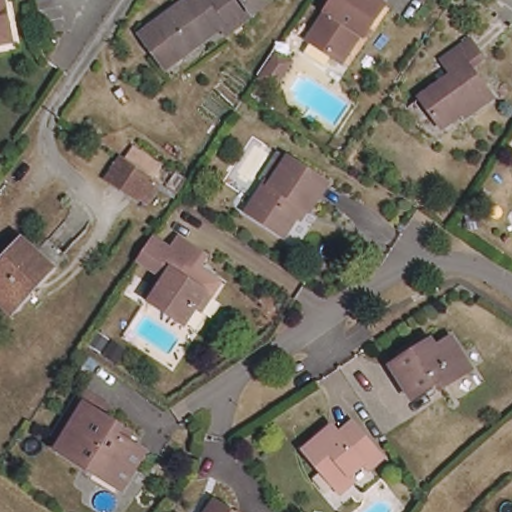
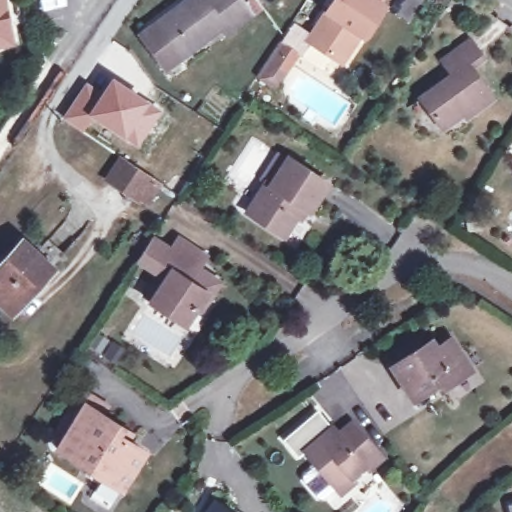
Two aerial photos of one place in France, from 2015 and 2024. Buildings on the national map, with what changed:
unchanged [(0,42),(0,0),(4,0),(9,41),(0,42)]
unchanged [(225,44),(221,38),(178,69),(152,34),(195,2),(197,7),(207,0),(274,0),(273,8),(225,44)]
unchanged [(387,14),(367,44),(360,40),(340,68),(309,46),(339,0),(387,0),(381,9),(387,14)]
unchanged [(468,41),(479,57),(467,64),(492,99),(463,121),(460,115),(439,130),(419,100),(451,78),(439,63),(468,41)]
unchanged [(254,45),(268,54),(252,79),(239,70),(254,45)]
new [(102,89),(111,76),(164,110),(137,148),(94,119),(88,114),(102,89)]
new [(86,79),(102,89),(88,114),(94,119),(84,134),(61,119),(86,79)]
unchanged [(107,169),(120,149),(157,174),(145,194),(107,169)]
unchanged [(300,219),(288,237),(248,211),(267,181),(273,184),(292,157),(330,183),(312,212),(305,222),(300,219)]
unchanged [(60,259),(8,325),(0,319),(0,272),(30,234),(60,259)]
unchanged [(191,309),(180,327),(145,304),(137,299),(154,272),(146,268),(136,260),(147,240),(166,253),(174,241),(197,256),(189,268),(214,284),(206,297),(196,313),(191,309)]
new [(96,332),(109,340),(101,353),(87,344),(96,332)]
unchanged [(418,351),(432,343),(436,350),(452,339),(472,373),(445,391),(442,386),(415,404),(392,368),(418,351)]
new [(112,342),(126,351),(117,364),(104,354),(112,342)]
unchanged [(95,477),(60,454),(66,446),(56,439),(82,397),(110,413),(106,419),(119,429),(134,438),(128,447),(145,457),(122,494),(118,501),(91,484),(95,477)]
unchanged [(332,509),(327,503),(296,464),(323,440),(330,447),(342,437),(372,474),(359,485),(355,480),(342,491),(347,496),(332,509)]
unchanged [(215,497),(236,512),(204,512),(215,497)]

